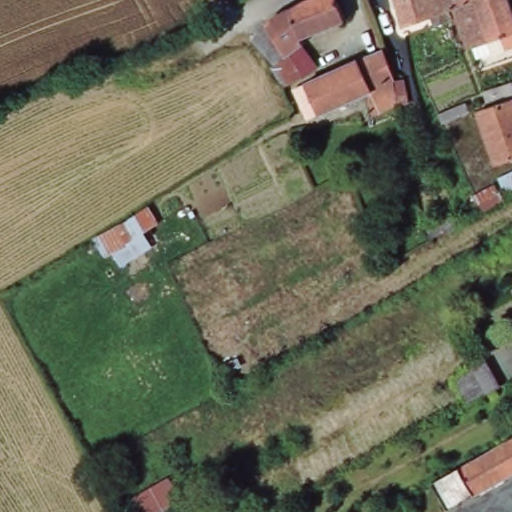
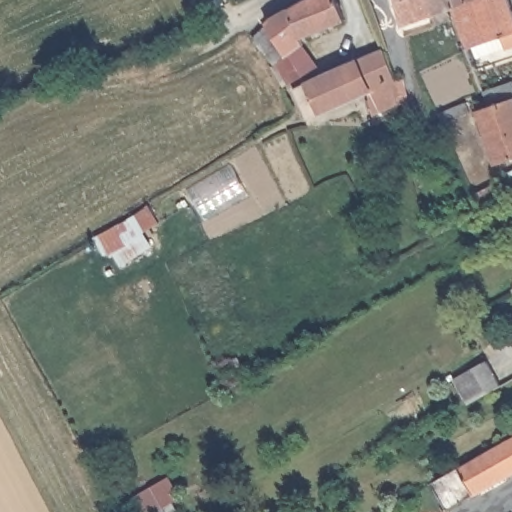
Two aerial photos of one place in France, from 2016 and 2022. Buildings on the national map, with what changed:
unchanged [(274,65),(252,37),(267,26),(266,22),(275,17),(278,15),(287,9),(302,2),(306,0),(338,0),(341,7),(345,17),(346,20),(318,31),(313,32),(310,34),(301,37),(297,40),(282,50),(286,56),(301,46),(311,70),(288,84),(276,63),(274,65)]
unchanged [(396,0),(426,0),(430,15),(402,24),(396,0)]
unchanged [(453,0),(455,5),(456,7),(448,9),(430,15),(426,0),(453,0)]
unchanged [(453,0),(468,0),(455,5),(453,0)]
unchanged [(468,47),(456,7),(455,5),(468,0),(509,0),(512,7),(512,45),(506,47),(490,54),(485,41),(468,47)]
unchanged [(406,94),(397,97),(398,105),(372,115),(368,98),(367,92),(356,62),(383,49),(395,80),(403,80),(406,94)]
unchanged [(294,89),(307,83),(316,79),(356,62),(367,92),(320,114),(319,112),(307,117),(294,89)]
unchanged [(480,114),(512,101),(512,158),(497,164),(480,114)]
unchanged [(122,225),(152,206),(163,225),(148,232),(157,247),(122,267),(116,256),(105,257),(95,237),(122,225)]
unchanged [(496,448),(512,439),(512,475),(462,503),(447,476),(496,448)]
unchanged [(165,482),(177,512),(131,512),(127,503),(165,482)]

